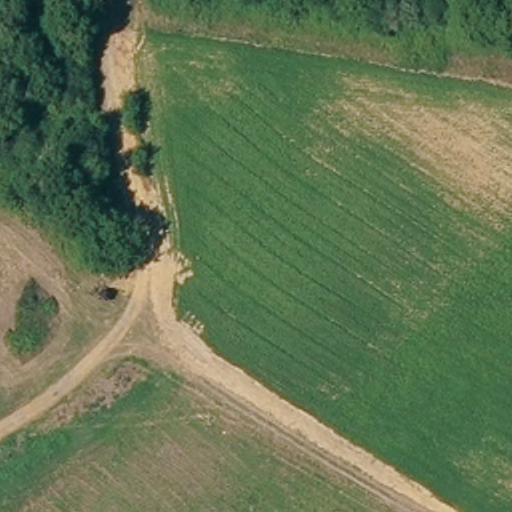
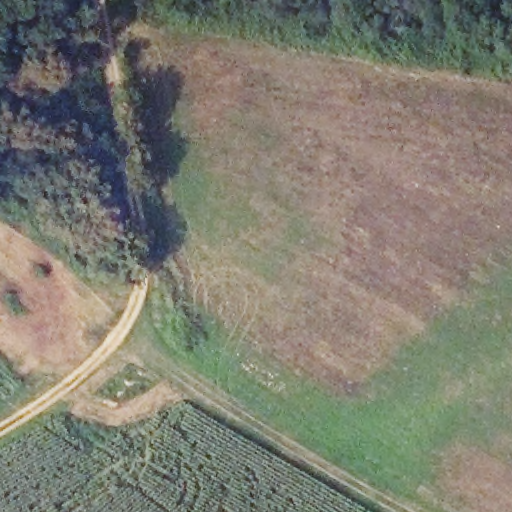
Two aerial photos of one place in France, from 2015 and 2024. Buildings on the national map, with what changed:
[]

